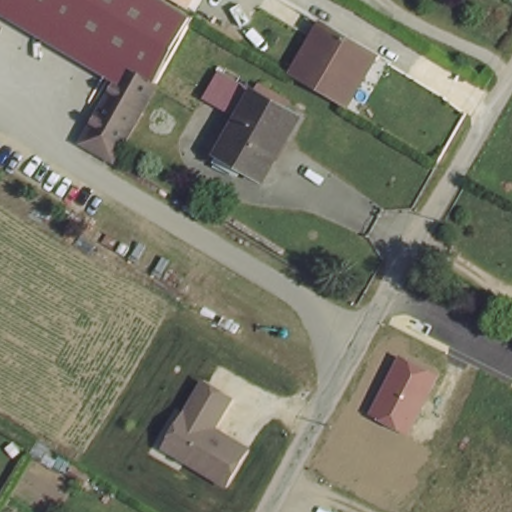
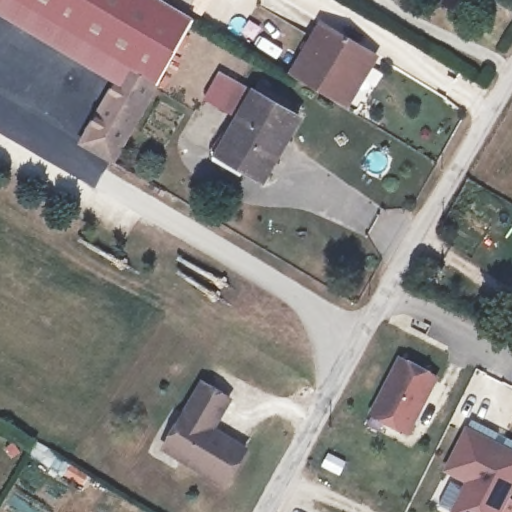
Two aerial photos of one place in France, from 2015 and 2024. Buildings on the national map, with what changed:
unchanged [(83,137),(84,135),(126,59),(23,0),(172,0),(193,12),(159,72),(114,153),(113,155),(83,137)]
new [(202,14),(179,0),(209,0),(202,14)]
unchanged [(347,96),(337,91),(292,64),(322,13),(367,39),(377,45),(347,96)]
unchanged [(241,117),(208,98),(223,73),(256,93),(241,117)]
unchanged [(256,93),(301,119),(287,144),(241,117),(256,93)]
unchanged [(287,144),(268,176),(223,149),(241,117),(287,144)]
unchanged [(438,376),(408,435),(369,414),(399,355),(438,376)]
unchanged [(232,398),(214,428),(248,447),(225,487),(160,448),(201,380),(232,398)]
new [(490,432),(512,444),(512,475),(492,512),(467,512),(450,503),(467,471),(445,459),(466,420),(481,428),(490,432)]

